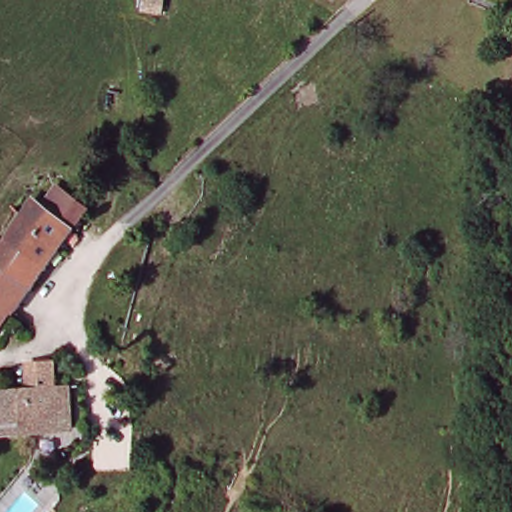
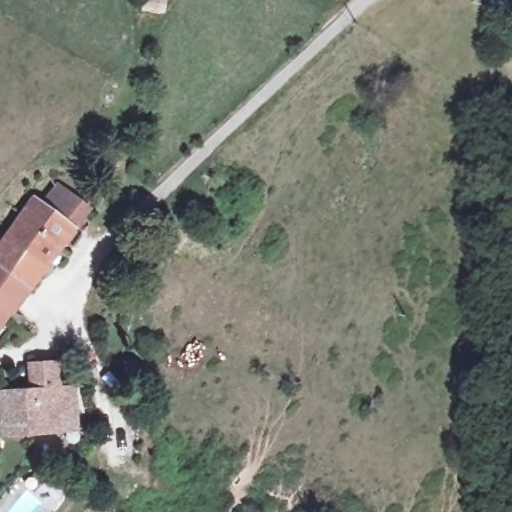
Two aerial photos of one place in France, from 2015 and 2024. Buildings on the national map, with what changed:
unchanged [(13,220),(22,204),(27,207),(33,200),(50,208),(60,194),(78,206),(77,208),(51,247),(13,220)]
unchanged [(13,220),(51,247),(23,288),(0,274),(0,238),(13,220)]
unchanged [(6,312),(5,311),(0,320),(0,274),(23,288),(10,307),(6,312)]
unchanged [(20,360),(45,356),(50,380),(68,377),(75,419),(68,420),(52,422),(52,428),(28,430),(25,408),(21,386),(25,385),(20,360)]
unchanged [(25,408),(28,430),(0,435),(0,390),(21,386),(25,408)]

